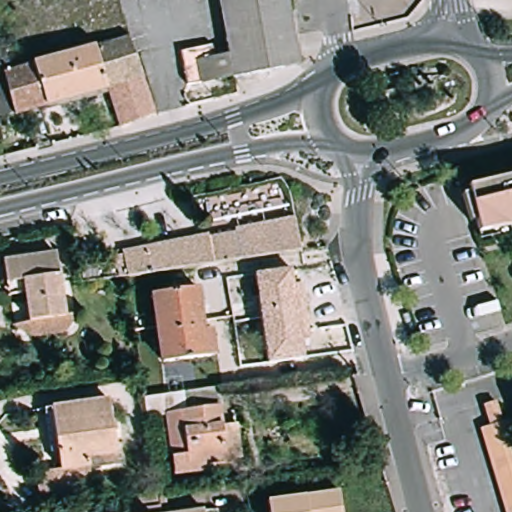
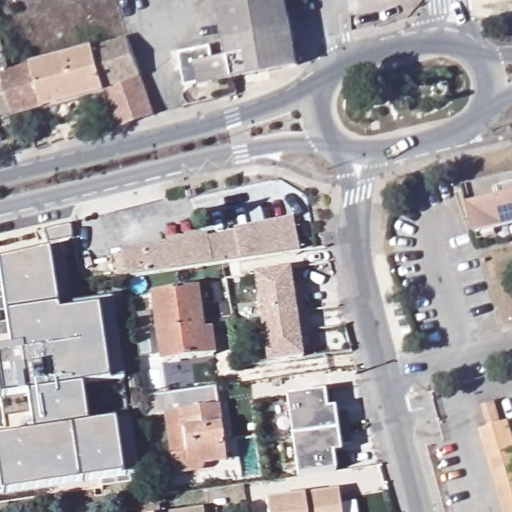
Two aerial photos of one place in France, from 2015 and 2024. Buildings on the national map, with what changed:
unchanged [(293,71),(181,92),(173,56),(208,51),(209,63),(223,60),(212,0),(279,0),(293,71)]
unchanged [(18,115),(18,113),(0,117),(0,44),(7,42),(14,70),(133,38),(161,115),(126,127),(113,89),(18,115)]
unchanged [(484,233),(479,216),(475,216),(468,187),(512,177),(512,226),(484,233)]
unchanged [(201,270),(200,260),(126,271),(118,272),(117,263),(123,261),(121,247),(207,231),(208,234),(234,228),(234,225),(294,213),(301,246),(222,257),(223,267),(201,270)]
new [(28,393),(1,397),(0,390),(0,349),(11,347),(0,273),(0,262),(48,250),(58,247),(68,305),(112,299),(125,380),(109,381),(83,385),(88,424),(115,421),(128,419),(136,473),(123,475),(3,494),(0,494),(0,439),(35,433),(28,393)]
demolished [(23,285),(6,287),(3,265),(55,258),(65,322),(29,326),(25,299),(23,285)]
unchanged [(300,341),(303,359),(267,364),(254,274),(290,269),(291,286),(301,284),(303,291),(308,333),(309,340),(300,341)]
unchanged [(160,363),(151,292),(197,287),(203,330),(212,329),(215,355),(160,363)]
unchanged [(192,472),(175,474),(166,414),(147,417),(144,397),(216,388),(221,426),(238,423),(243,458),(226,460),(203,464),(203,470),(192,472)]
new [(326,391),(327,407),(335,407),(342,452),(335,454),(336,470),(299,477),(286,397),(326,391)]
unchanged [(489,416),(485,397),(496,394),(502,415),(508,412),(512,428),(512,512),(506,512),(480,420),(489,416)]
demolished [(36,499),(33,473),(60,469),(51,409),(108,401),(115,451),(87,456),(92,492),(36,499)]
unchanged [(339,491),(342,512),(269,512),(268,501),(339,491)]
unchanged [(141,512),(136,512),(136,504),(158,501),(160,510),(141,512)]

